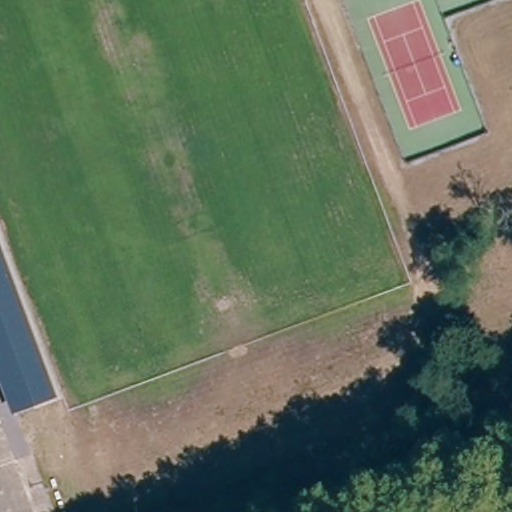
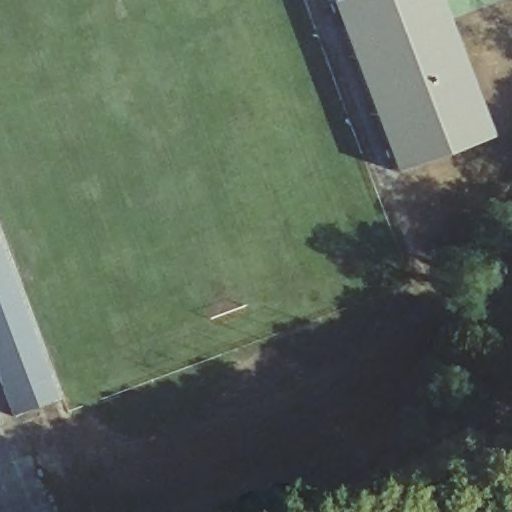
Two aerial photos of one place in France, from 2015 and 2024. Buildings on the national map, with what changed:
new [(445,17),(487,134),(392,169),(329,0),(438,0),(445,17)]
unchanged [(55,395),(9,411),(0,387),(0,249),(55,395)]

